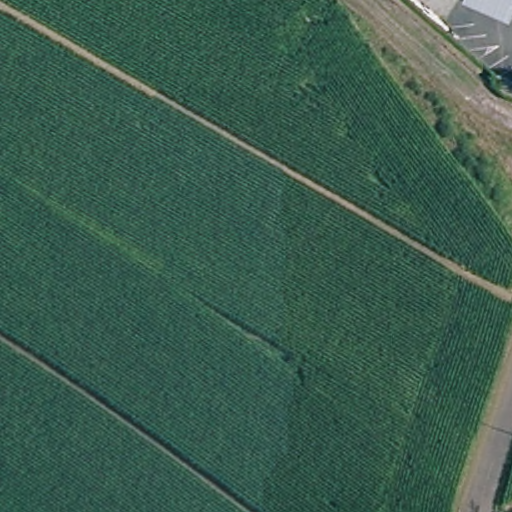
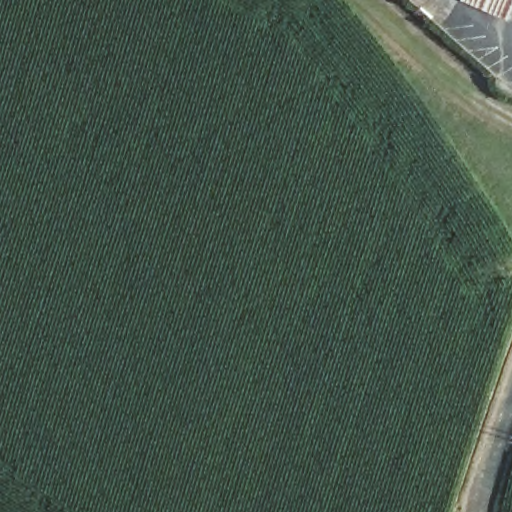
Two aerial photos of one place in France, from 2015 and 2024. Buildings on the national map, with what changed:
unchanged [(473,0),(512,0),(512,15),(473,0)]

